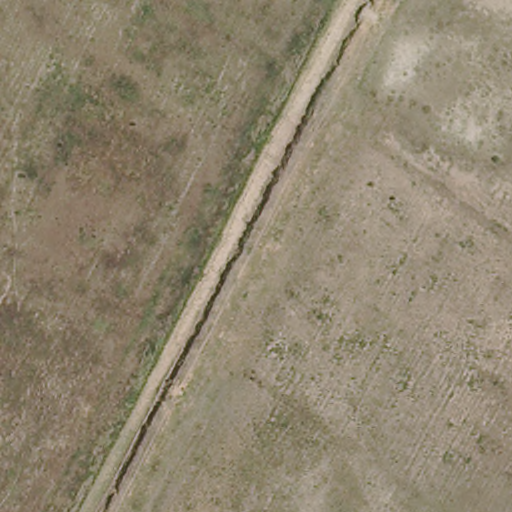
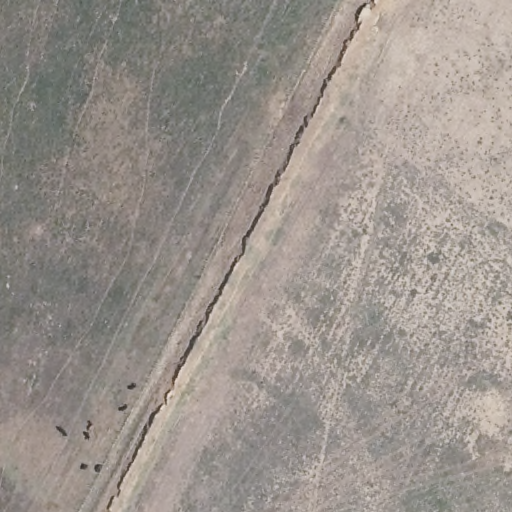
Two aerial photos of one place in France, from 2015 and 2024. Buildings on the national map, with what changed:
[]

